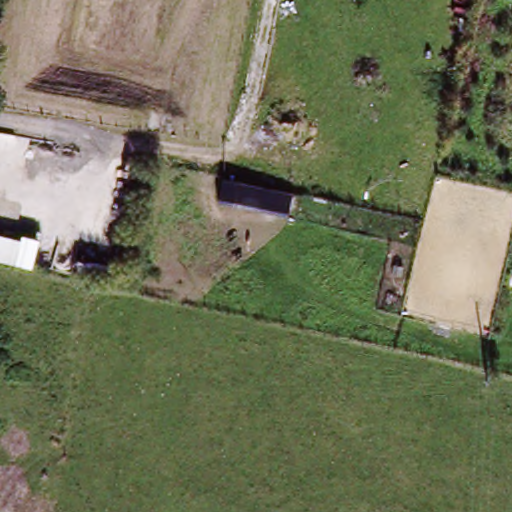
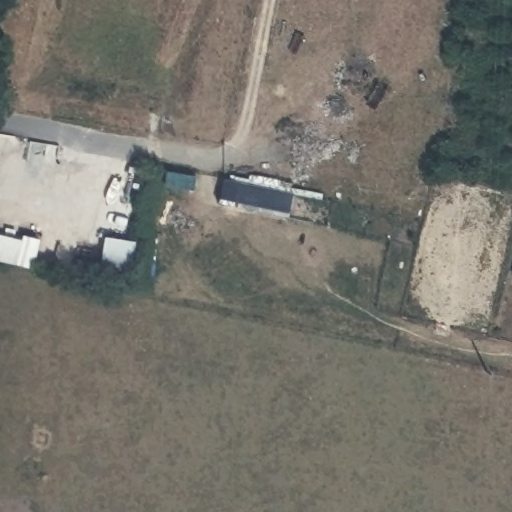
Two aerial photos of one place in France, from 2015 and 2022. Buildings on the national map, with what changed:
unchanged [(287,216),(219,202),(224,180),(293,194),(287,216)]
unchanged [(0,260),(0,235),(22,240),(23,236),(39,240),(32,268),(0,260)]

